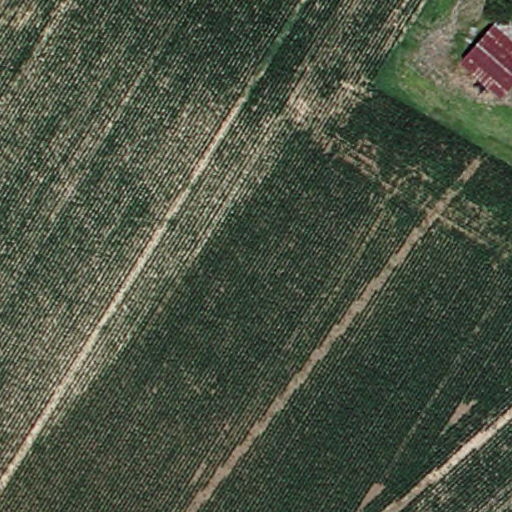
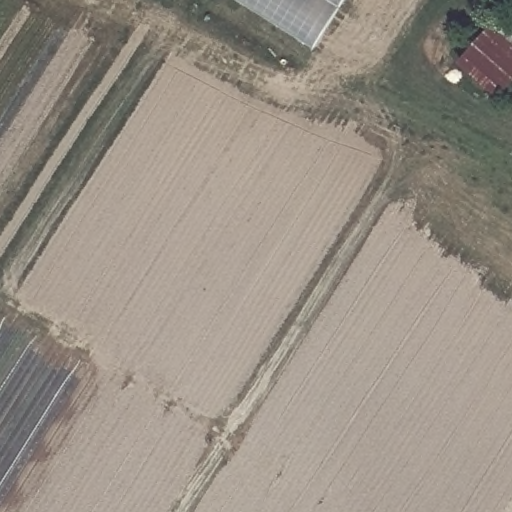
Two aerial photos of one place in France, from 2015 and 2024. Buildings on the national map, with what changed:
new [(236,0),(344,0),(313,49),(236,0)]
unchanged [(506,96),(462,59),(508,13),(512,16),(512,89),(506,96)]

